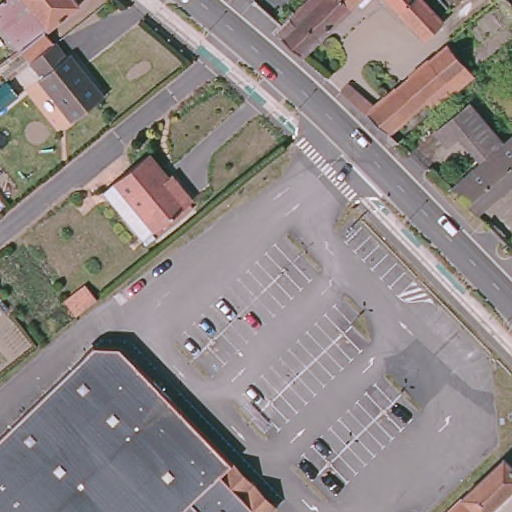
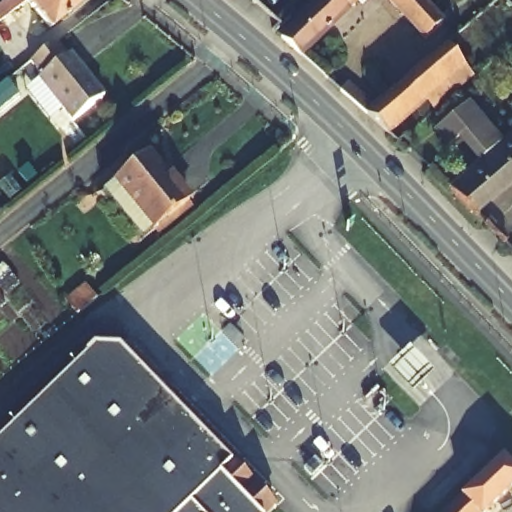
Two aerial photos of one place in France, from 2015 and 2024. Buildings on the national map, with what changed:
unchanged [(34,21),(44,34),(22,52),(0,69),(0,47),(10,39),(0,26),(0,0),(61,0),(34,21)]
unchanged [(309,0),(360,0),(302,57),(281,40),(273,32),(289,17),(291,19),(309,0)]
unchanged [(443,25),(425,41),(388,0),(421,0),(443,25)]
unchanged [(33,66),(22,52),(44,34),(46,32),(57,47),(60,45),(74,62),(94,87),(62,111),(30,69),(33,66)]
unchanged [(425,102),(387,135),(340,92),(347,84),(374,108),(429,62),(447,46),(474,77),(456,93),(433,112),(425,102)]
unchanged [(10,86),(8,87),(0,94),(0,72),(10,86)]
unchanged [(440,127),(472,100),(508,141),(512,137),(512,184),(475,217),(450,191),(487,159),(482,153),(464,132),(452,142),(440,127)]
unchanged [(165,231),(160,226),(150,235),(109,186),(155,149),(195,199),(200,204),(165,231)]
unchanged [(110,332),(155,377),(140,392),(95,346),(110,332)]
unchanged [(446,377),(415,406),(382,373),(415,340),(446,377)]
unchanged [(95,346),(140,392),(155,377),(174,398),(172,400),(256,488),(267,500),(275,507),(270,512),(0,512),(0,438),(95,346)]
unchanged [(512,468),(512,489),(488,512),(445,512),(502,457),(510,467),(512,468)]

